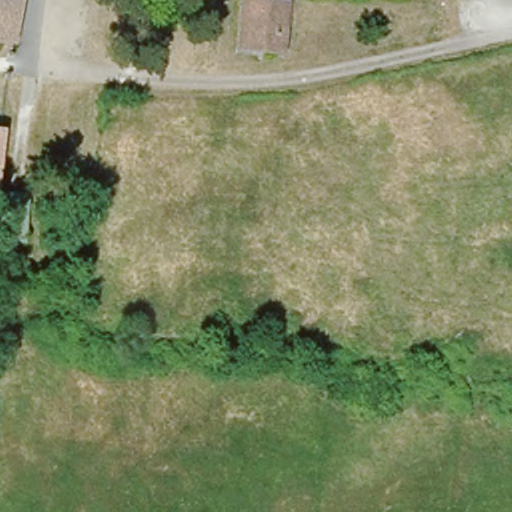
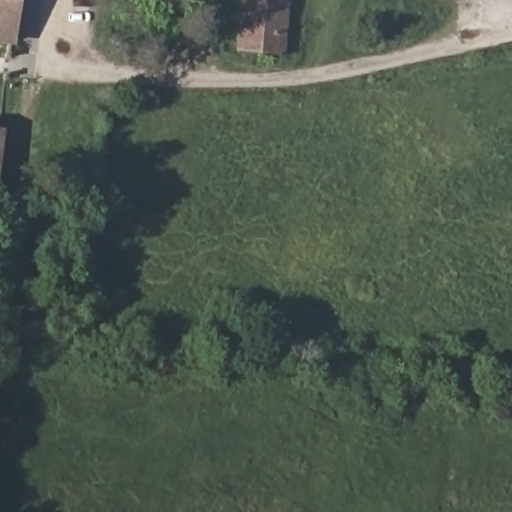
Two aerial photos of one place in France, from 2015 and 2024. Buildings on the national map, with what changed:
unchanged [(0,0),(18,0),(14,37),(0,36),(0,0)]
unchanged [(289,4),(285,51),(239,46),(243,0),(249,0),(289,4)]
unchanged [(0,152),(0,128),(3,128),(0,152)]

